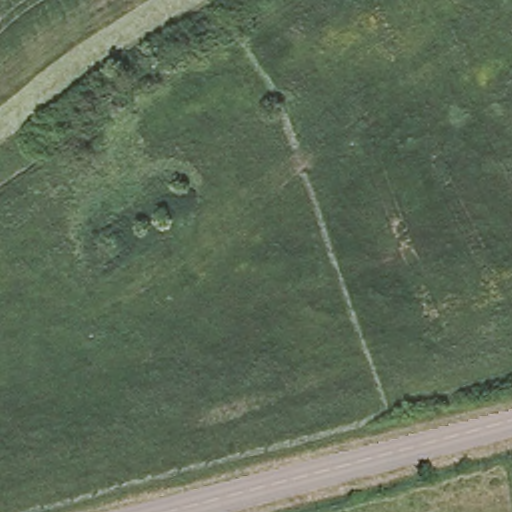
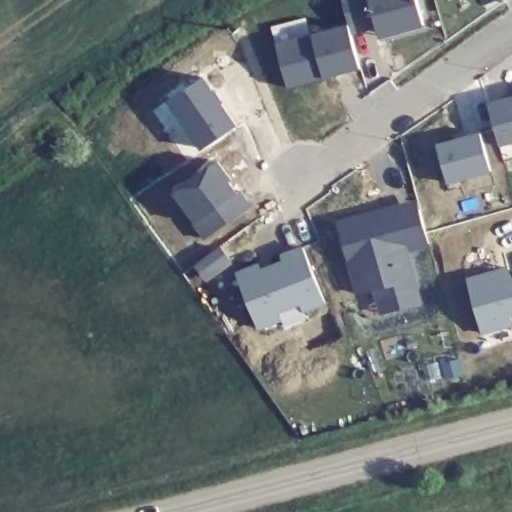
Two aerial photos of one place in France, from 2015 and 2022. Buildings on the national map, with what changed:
unchanged [(372,31),(370,25),(344,32),(343,25),(336,0),(412,0),(418,25),(381,35),(373,36),(372,31)]
unchanged [(344,32),(354,68),(281,87),(270,44),(266,26),(299,18),(304,35),(343,25),(344,32)]
new [(202,78),(236,127),(198,152),(166,103),(202,78)]
new [(500,145),(488,102),(512,96),(512,142),(500,145)]
new [(493,172),(448,185),(436,144),(480,132),(493,172)]
new [(216,162),(231,182),(226,184),(236,197),(240,195),(251,207),(203,242),(172,195),(216,162)]
new [(378,211),(380,219),(413,210),(422,244),(399,250),(409,288),(371,299),(369,289),(351,293),(333,224),(378,211)]
new [(259,265),(259,268),(280,262),(279,256),(301,248),(325,306),(303,315),(301,308),(279,315),(282,323),(257,330),(236,272),(259,265)]
new [(508,268),(510,279),(512,279),(512,317),(510,317),(512,324),(512,328),(481,335),(466,278),(508,268)]

